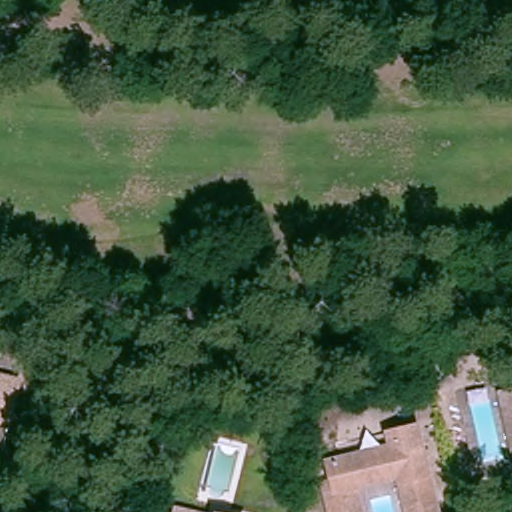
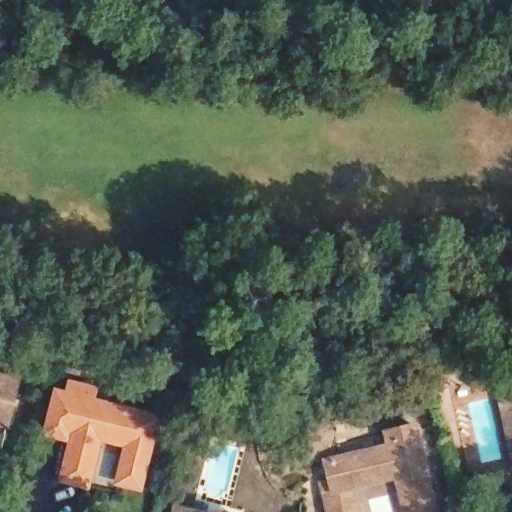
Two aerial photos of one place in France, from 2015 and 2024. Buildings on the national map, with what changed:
unchanged [(7,425),(0,424),(0,376),(19,381),(7,425)]
new [(65,388),(67,379),(99,385),(97,396),(160,411),(142,492),(112,484),(122,446),(103,441),(91,490),(57,481),(67,442),(42,434),(54,386),(65,388)]
unchanged [(512,387),(512,417),(505,388),(512,387)]
unchanged [(333,476),(328,455),(397,438),(394,425),(416,420),(435,496),(437,509),(425,512),(407,512),(396,470),(357,479),(365,512),(333,512),(325,478),(333,476)]
unchanged [(196,512),(171,512),(172,506),(196,512)]
unchanged [(225,512),(212,512),(213,509),(225,512)]

